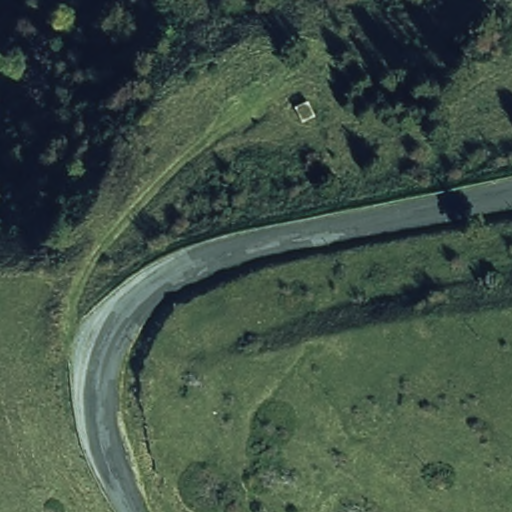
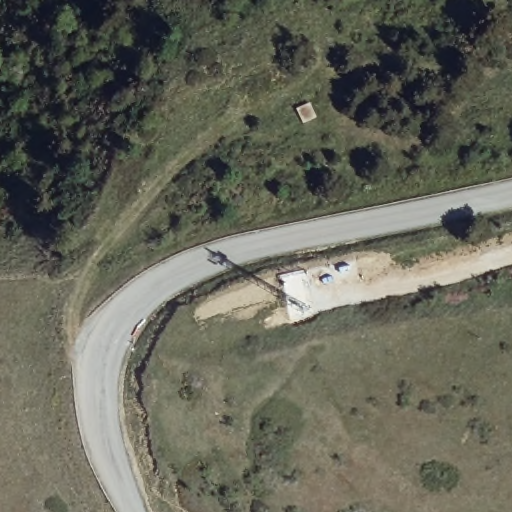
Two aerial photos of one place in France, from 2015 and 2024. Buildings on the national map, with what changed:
unchanged [(309,98),(318,119),(299,128),(291,110),(309,98)]

